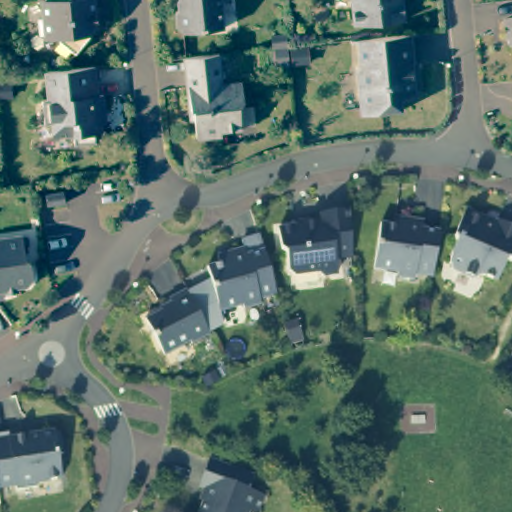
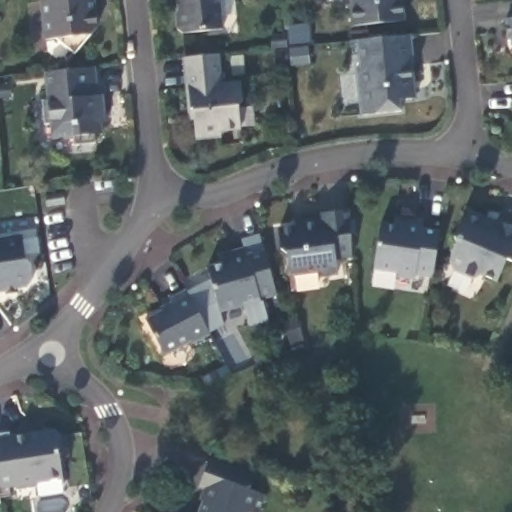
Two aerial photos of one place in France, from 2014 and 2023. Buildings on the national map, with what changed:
unchanged [(100,20),(79,49),(59,33),(49,34),(45,0),(98,0),(100,20)]
unchanged [(223,26),(185,30),(178,26),(176,11),(180,5),(179,0),(220,0),(223,26)]
unchanged [(401,19),(352,24),(349,0),(399,0),(401,19)]
unchanged [(504,18),(512,17),(512,37),(506,38),(504,18)]
unchanged [(414,95),(398,96),(399,107),(359,111),(355,64),(360,64),(357,38),(408,33),(414,95)]
unchanged [(218,82),(236,80),(238,96),(233,105),(235,125),(217,127),(217,133),(192,135),(189,107),(185,101),(180,56),(214,52),(218,82)]
unchanged [(96,91),(102,91),(104,110),(98,111),(100,130),(94,131),(94,140),(73,142),(72,134),(52,135),(51,120),(43,121),(41,97),(48,96),(45,69),(59,67),(94,65),(96,91)]
unchanged [(62,189),(64,198),(46,202),(44,192),(62,189)]
unchanged [(335,255),(337,271),(322,272),(315,269),(295,271),(289,266),(285,250),(279,245),(277,227),(294,225),(293,220),(320,216),(320,211),(348,208),(351,254),(335,255)]
unchanged [(484,221),(494,225),(496,219),(512,226),(512,255),(511,258),(503,261),(496,280),(481,273),(470,276),(453,269),(449,254),(455,241),(454,234),(464,208),(485,216),(484,221)]
unchanged [(418,272),(411,275),(396,273),(397,270),(373,266),(379,220),(390,222),(392,214),(422,218),(421,226),(438,229),(432,274),(418,272)]
unchanged [(20,231),(24,256),(29,262),(33,274),(26,281),(0,287),(0,235),(20,231)]
unchanged [(259,296),(260,301),(242,306),(240,301),(218,307),(206,263),(219,260),(217,252),(245,245),(247,252),(264,247),(276,291),(259,296)]
unchanged [(190,341),(189,338),(164,351),(146,315),(172,301),(169,295),(186,286),(209,331),(190,341)]
unchanged [(11,428),(12,433),(30,430),(31,435),(41,433),(40,428),(54,426),(61,431),(64,449),(59,450),(63,473),(37,477),(38,483),(17,486),(16,480),(0,483),(0,430),(11,428)]
unchanged [(250,488),(265,495),(258,512),(254,512),(249,510),(248,512),(201,512),(211,490),(199,485),(211,456),(255,475),(250,488)]

